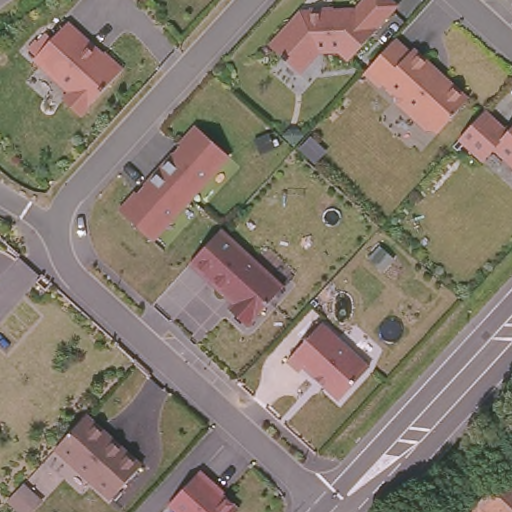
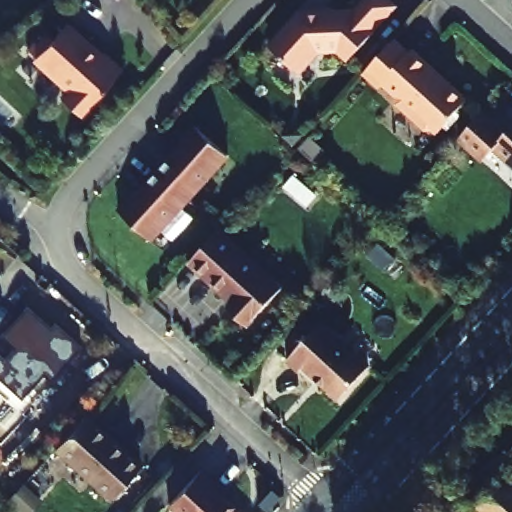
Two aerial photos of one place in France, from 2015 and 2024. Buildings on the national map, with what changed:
unchanged [(313,12),(313,14),(321,13),(321,10),(334,10),(334,11),(353,11),(363,0),(391,0),(397,6),(374,30),(374,31),(349,58),(339,47),(324,49),(321,46),(298,71),(271,46),(301,13),(313,12)]
unchanged [(26,53),(45,31),(55,38),(71,22),(123,71),(83,116),(61,98),(67,92),(33,60),(26,53)]
unchanged [(379,56),(394,39),(410,53),(413,49),(433,66),(429,71),(445,85),(449,81),(468,99),(438,133),(433,128),(426,129),(398,103),(398,96),(384,83),(380,87),(364,72),(379,56)]
unchanged [(508,131),(512,126),(512,164),(494,148),(483,161),(459,139),(484,111),(508,131)]
unchanged [(136,192),(138,194),(160,170),(181,146),(178,144),(196,126),(229,156),(191,198),(152,241),(118,210),(136,192)]
unchanged [(221,230),(284,287),(248,326),(229,309),(234,303),(190,263),(221,230)]
new [(50,326),(54,321),(81,344),(52,378),(45,371),(23,397),(0,377),(0,354),(4,358),(15,345),(3,335),(27,307),(50,326)]
unchanged [(322,324),(369,369),(339,400),(304,367),(299,372),(287,360),(322,324)]
unchanged [(85,415),(141,466),(110,499),(55,448),(85,415)]
unchanged [(503,472),(512,461),(512,480),(508,476),(503,472)]
unchanged [(199,471),(213,483),(209,487),(219,496),(221,494),(238,510),(236,512),(178,512),(169,504),(199,471)]
unchanged [(508,476),(512,480),(512,512),(475,512),(508,476)]

